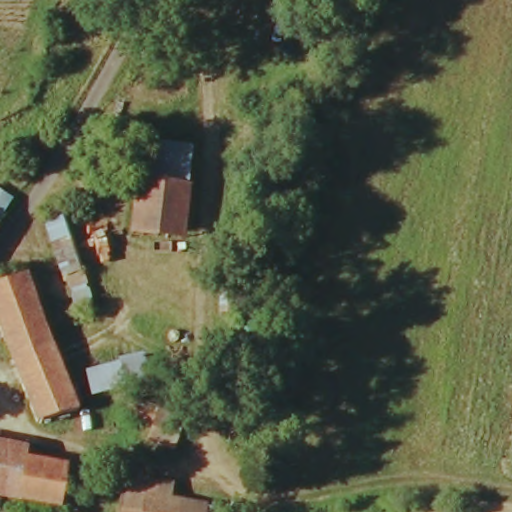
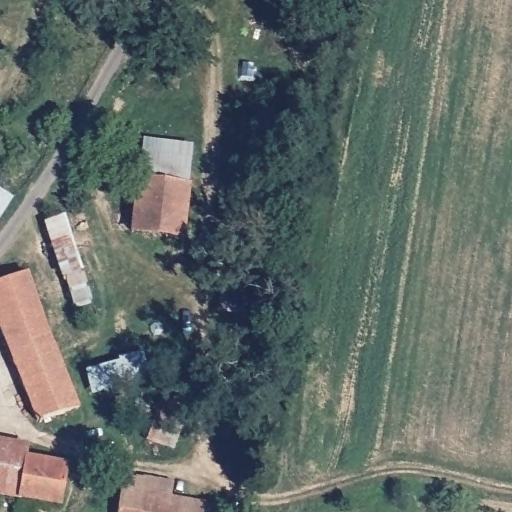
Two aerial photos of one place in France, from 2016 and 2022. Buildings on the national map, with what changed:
unchanged [(190,142),(188,180),(183,235),(129,232),(132,177),(136,137),(190,142)]
unchanged [(42,222),(63,212),(81,268),(92,301),(73,308),(59,277),(42,222)]
unchanged [(45,335),(79,405),(34,419),(0,332),(0,282),(24,274),(45,335)]
unchanged [(0,496),(0,444),(24,447),(23,457),(17,498),(0,496)]
unchanged [(23,457),(66,464),(65,468),(59,504),(17,498),(23,457)]
unchanged [(162,500),(174,501),(173,512),(116,512),(118,479),(106,478),(106,471),(119,473),(163,481),(162,494),(162,500)]
unchanged [(227,512),(173,512),(174,501),(162,500),(162,494),(228,505),(227,512)]

